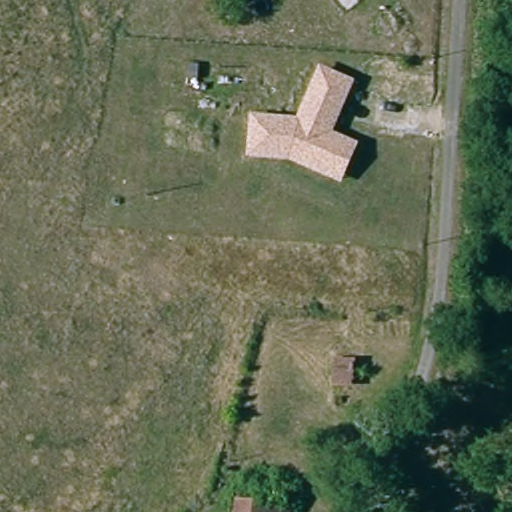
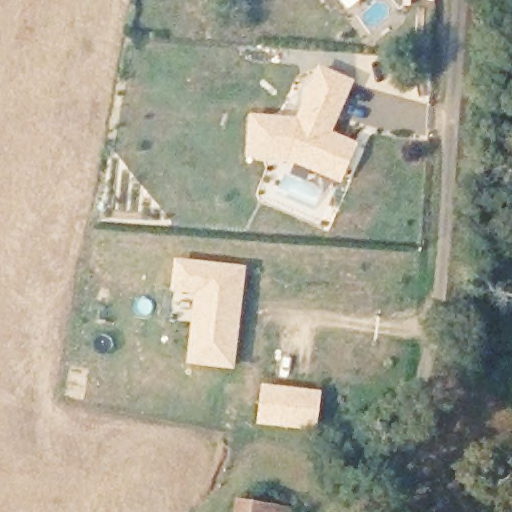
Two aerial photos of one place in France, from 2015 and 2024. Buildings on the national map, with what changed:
unchanged [(343,0),(366,0),(352,11),(343,0)]
unchanged [(251,113),(297,115),(320,65),(356,81),(335,132),(359,141),(345,183),(290,162),(247,157),(251,113)]
new [(246,267),(235,371),(186,364),(193,294),(171,291),(175,258),(246,267)]
demolished [(364,357),(362,376),(338,374),(340,355),(364,357)]
new [(318,393),(313,427),(260,422),(264,387),(318,393)]
demolished [(169,435),(192,440),(176,497),(152,492),(169,435)]
unchanged [(231,494),(290,502),(289,512),(230,512),(231,494)]

